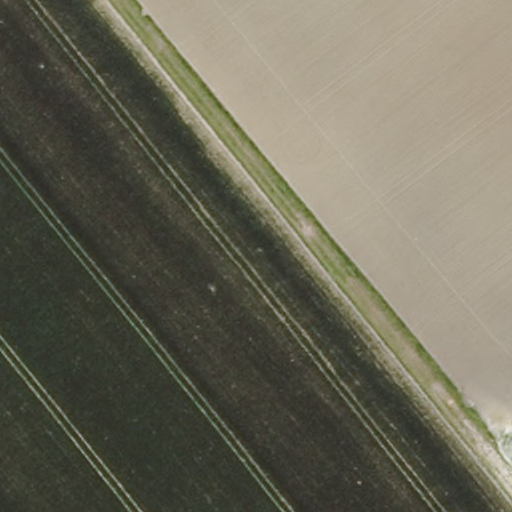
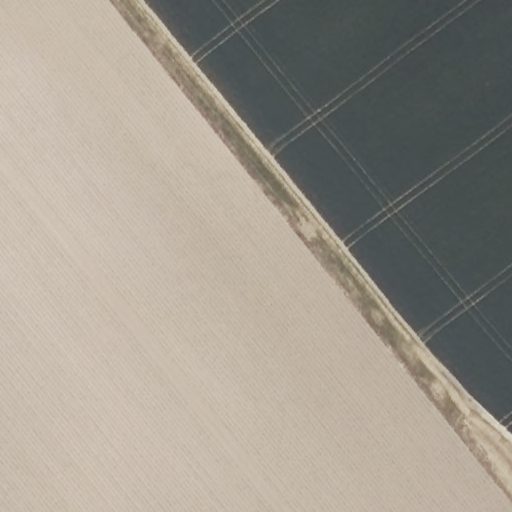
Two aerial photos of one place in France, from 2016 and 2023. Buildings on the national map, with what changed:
[]

